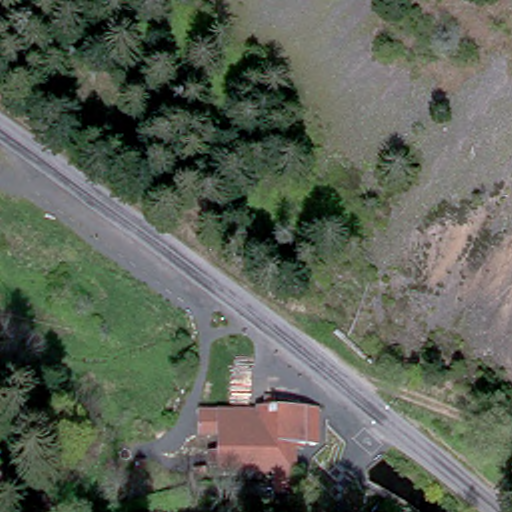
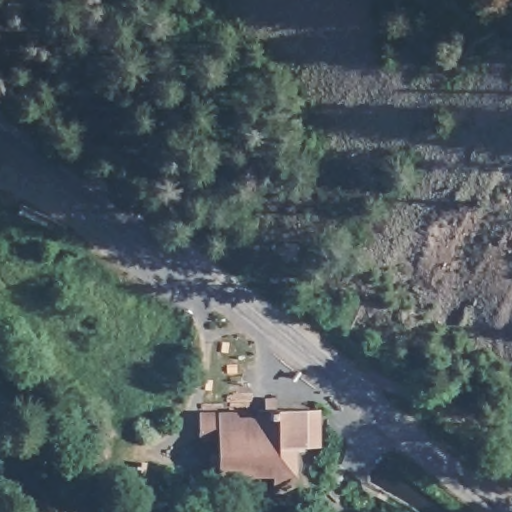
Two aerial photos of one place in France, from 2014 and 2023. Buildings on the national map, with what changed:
unchanged [(300,502),(258,502),(259,483),(213,483),(214,411),(258,411),(257,448),(301,450),(300,502)]
unchanged [(258,411),(321,412),(321,451),(301,450),(257,448),(258,411)]

